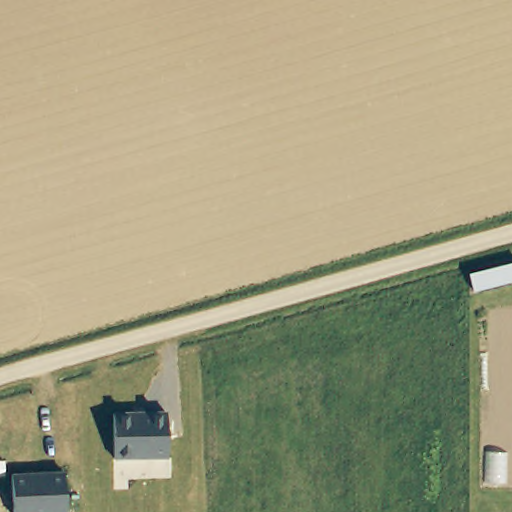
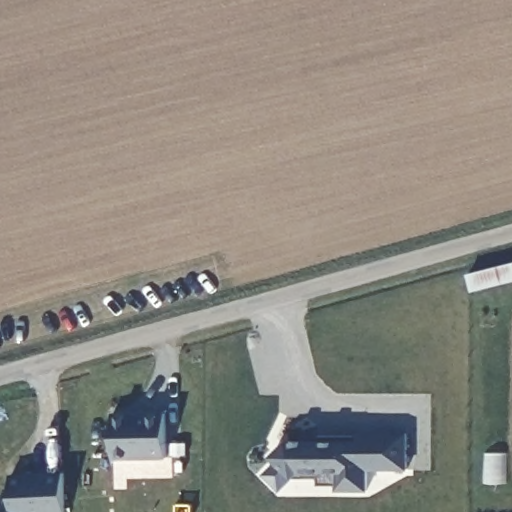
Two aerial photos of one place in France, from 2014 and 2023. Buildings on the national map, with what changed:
unchanged [(470,292),(471,275),(512,265),(512,283),(470,292)]
unchanged [(180,457),(128,458),(128,413),(180,413),(180,457)]
new [(409,471),(369,470),(369,492),(339,491),(338,483),(320,484),(319,477),(297,478),(282,490),(264,474),(274,463),(271,458),(288,440),(360,441),(360,432),(409,432),(409,471)]
unchanged [(79,509),(26,510),(26,470),(79,469),(79,509)]

